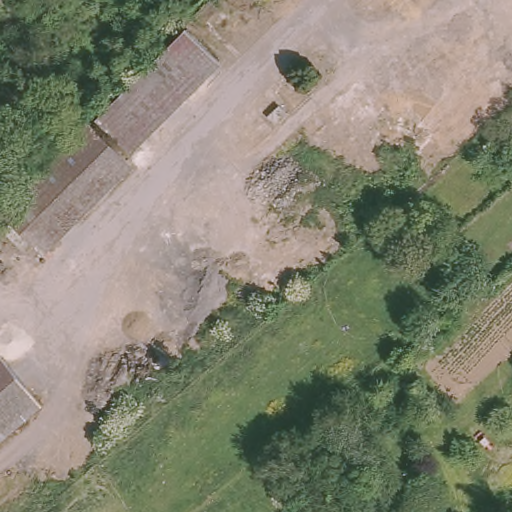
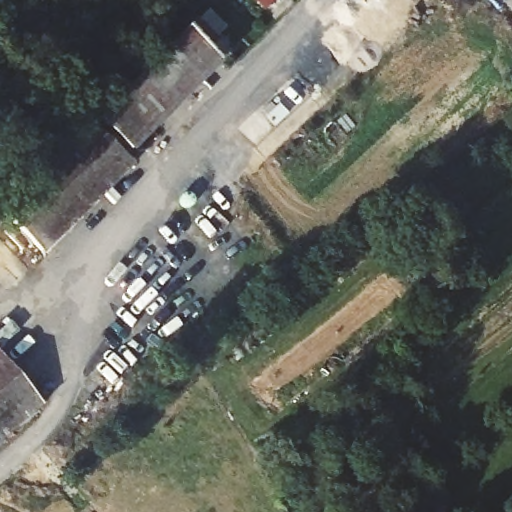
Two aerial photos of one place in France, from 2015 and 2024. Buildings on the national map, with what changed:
unchanged [(201,0),(208,0),(212,4),(198,20),(190,12),(201,0)]
unchanged [(194,26),(224,57),(136,143),(106,112),(194,26)]
unchanged [(272,104),(280,111),(272,120),(264,112),(272,104)]
unchanged [(11,231),(20,222),(4,204),(91,119),(135,162),(45,249),(33,238),(25,246),(11,231)]
unchanged [(0,441),(0,351),(45,403),(0,441)]

